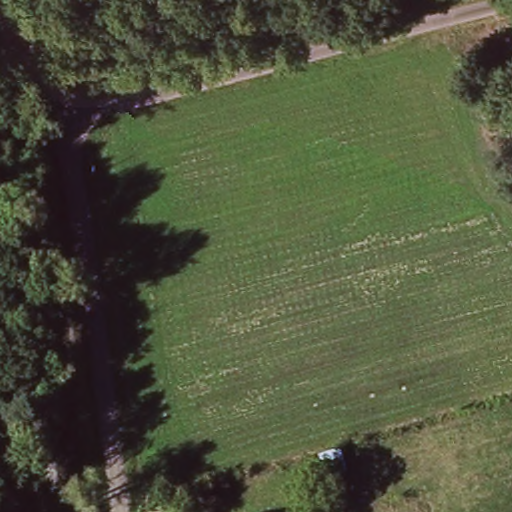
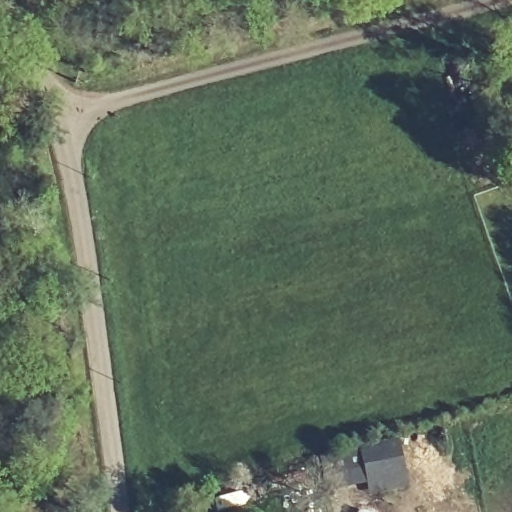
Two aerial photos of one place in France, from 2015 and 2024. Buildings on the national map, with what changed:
new [(400,436),(412,489),(369,498),(366,484),(345,489),(335,456),(354,447),(400,436)]

